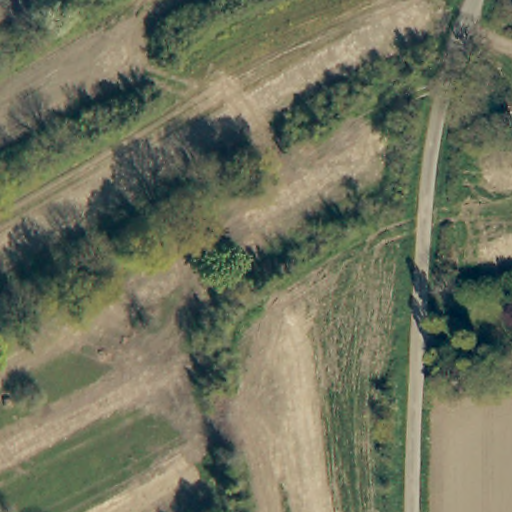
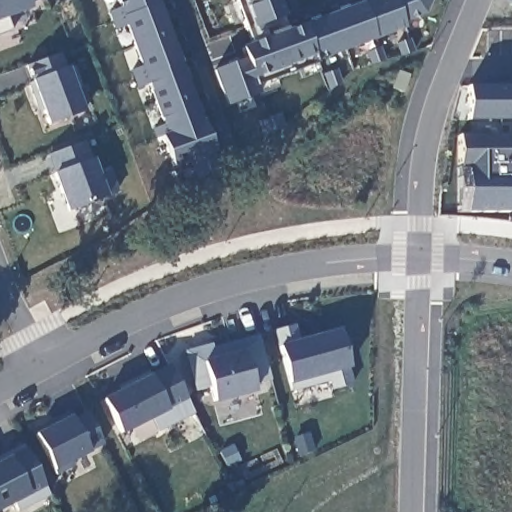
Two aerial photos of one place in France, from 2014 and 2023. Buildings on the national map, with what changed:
new [(31,8),(10,16),(14,32),(0,37),(0,0),(38,0),(29,2),(31,8)]
new [(197,181),(191,162),(175,169),(161,135),(157,137),(153,127),(164,124),(149,84),(138,87),(131,69),(141,66),(126,24),(115,28),(107,10),(119,5),(117,0),(161,0),(225,170),(197,181)]
new [(403,22),(405,27),(256,85),(260,96),(227,106),(214,69),(247,59),(241,45),(252,41),(236,0),(278,0),(287,26),(367,0),(430,0),(424,14),(403,22)]
new [(60,52),(65,67),(67,66),(68,67),(73,66),(81,86),(76,87),(84,111),(49,124),(40,99),(36,101),(29,82),(33,80),(27,64),(60,52)]
new [(457,210),(457,136),(466,136),(465,85),(512,85),(512,211),(457,210)]
new [(105,197),(67,209),(55,172),(48,154),(86,140),(93,157),(99,173),(109,167),(117,190),(105,197)]
new [(328,390),(327,378),(289,387),(278,343),(271,330),(296,322),(300,336),(339,327),(349,367),(352,383),(328,390)]
new [(258,333),(271,382),(252,388),(254,393),(212,402),(211,395),(197,397),(187,351),(258,333)]
new [(156,430),(149,420),(122,432),(104,399),(150,375),(168,363),(194,412),(156,430)]
new [(103,442),(91,451),(72,459),(75,465),(57,473),(55,469),(36,432),(71,413),(75,418),(87,411),(103,442)]
new [(14,502),(0,509),(0,459),(8,455),(24,446),(48,494),(19,512),(14,502)]

